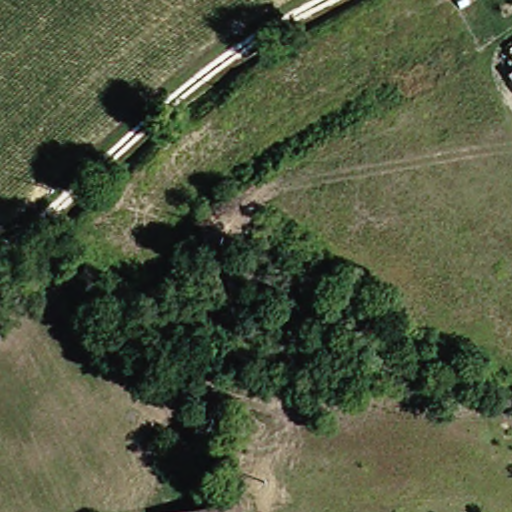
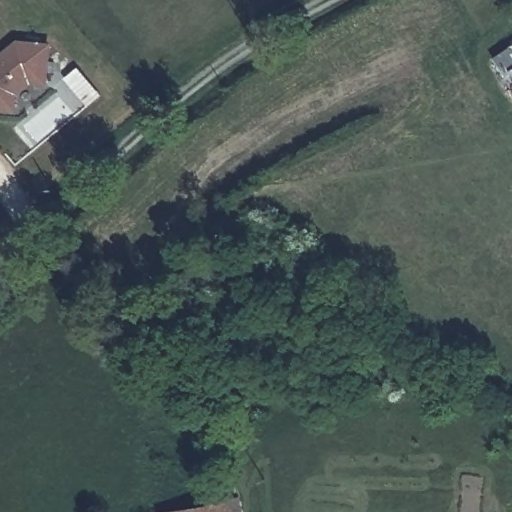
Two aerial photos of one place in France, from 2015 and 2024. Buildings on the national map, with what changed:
new [(45,87),(29,85),(17,96),(15,114),(0,112),(0,55),(17,41),(51,45),(45,87)]
unchanged [(251,498),(254,512),(223,512),(222,503),(251,498)]
unchanged [(177,512),(222,503),(223,512),(177,512)]

